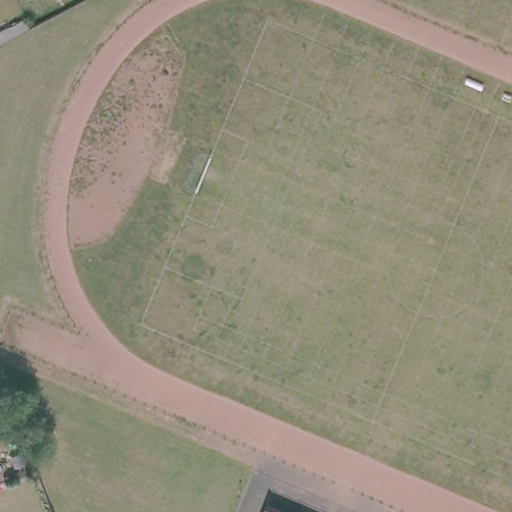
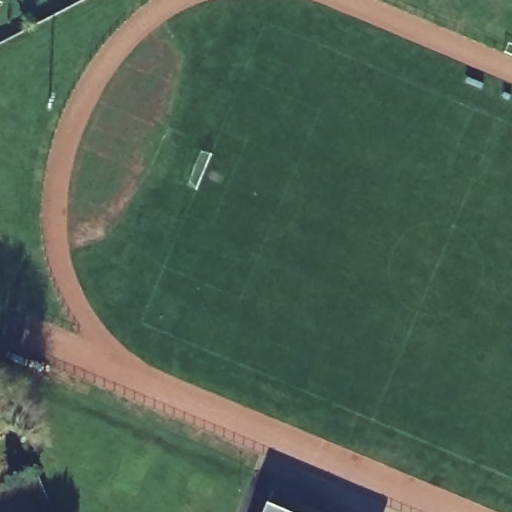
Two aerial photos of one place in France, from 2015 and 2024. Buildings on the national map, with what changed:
unchanged [(264,510),(270,512),(263,512),(264,510)]

